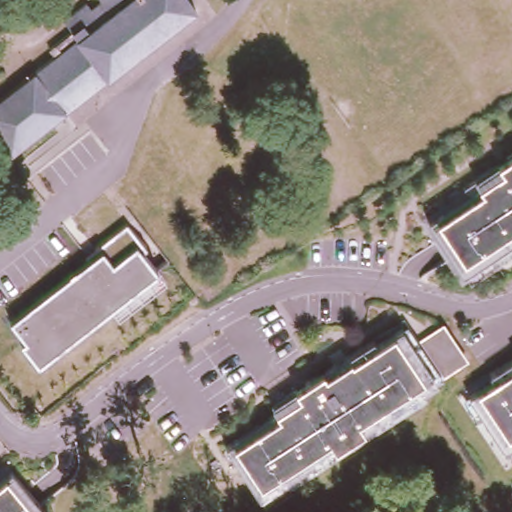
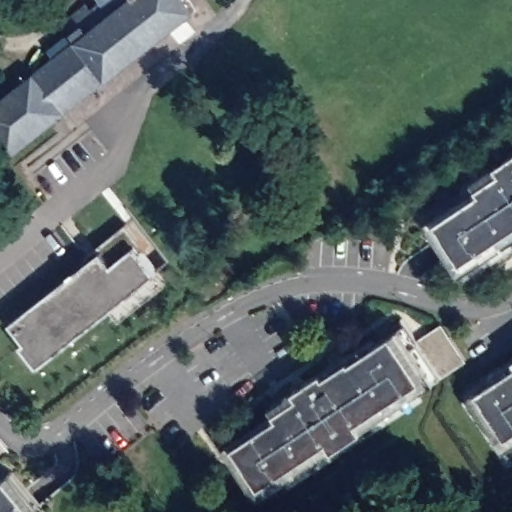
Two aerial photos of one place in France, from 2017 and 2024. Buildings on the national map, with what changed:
unchanged [(195,8),(10,154),(0,140),(0,97),(54,55),(48,47),(82,20),(88,28),(110,11),(103,0),(190,0),(195,8)]
unchanged [(471,192),(466,186),(491,169),(498,164),(512,153),(512,248),(493,260),(490,256),(462,273),(429,220),(471,192)]
unchanged [(101,252),(126,226),(136,246),(158,271),(40,364),(22,344),(26,341),(8,320),(101,252)]
unchanged [(465,359),(436,378),(371,422),(362,427),(335,446),(258,493),(253,488),(224,449),(279,417),(273,408),(320,372),(373,338),(376,343),(392,333),(401,326),(410,342),(441,324),(465,359)]
unchanged [(493,382),(489,377),(512,362),(512,445),(505,449),(469,398),(477,393),(493,382)]
unchanged [(3,477),(12,470),(46,512),(0,512),(0,480),(3,477)]

